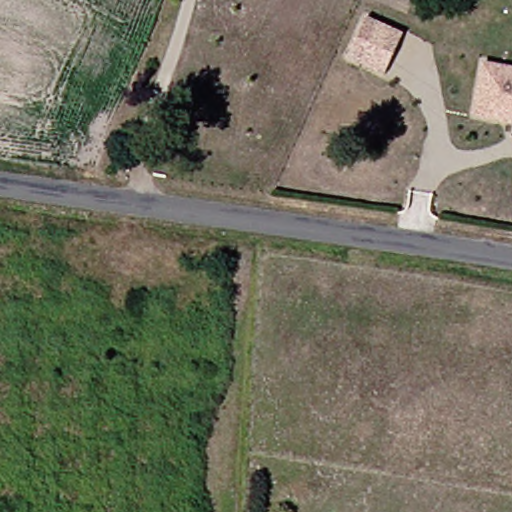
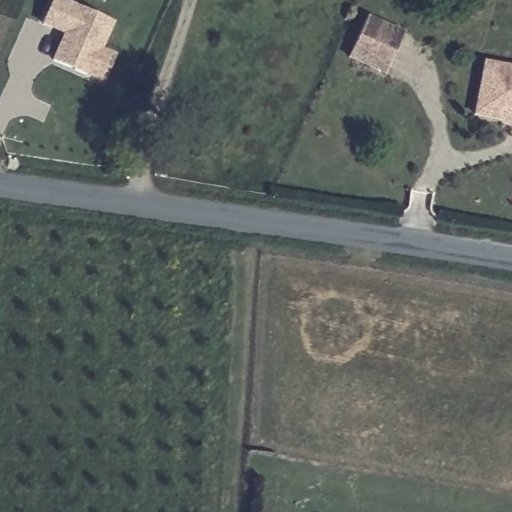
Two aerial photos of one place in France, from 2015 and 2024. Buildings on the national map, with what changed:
new [(72,0),(115,20),(92,72),(57,55),(69,29),(47,19),(55,0),(72,0)]
unchanged [(401,31),(385,71),(346,53),(362,13),(401,31)]
unchanged [(510,124),(471,115),(481,60),(512,66),(512,123),(510,123),(510,124)]

